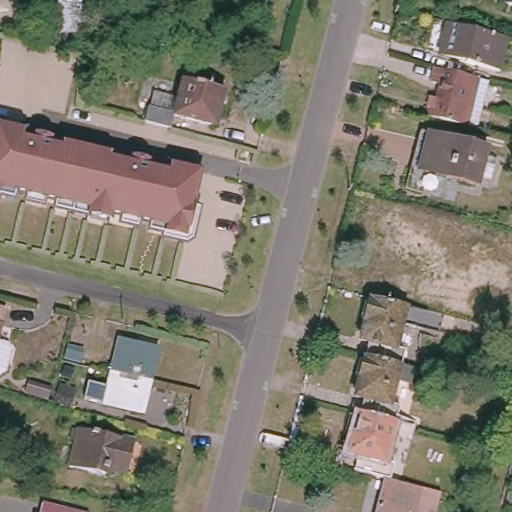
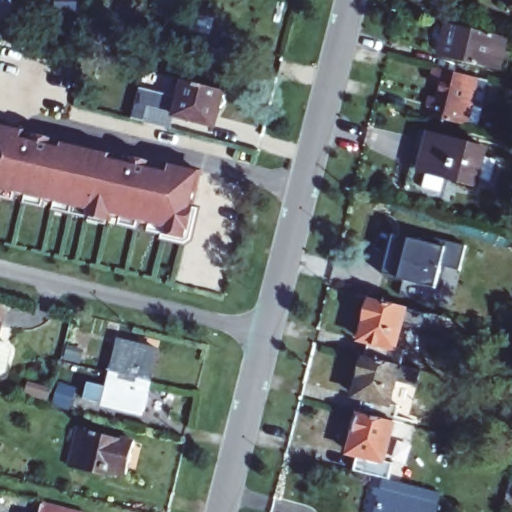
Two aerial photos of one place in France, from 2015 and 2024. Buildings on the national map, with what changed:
unchanged [(62,35),(63,0),(87,0),(87,5),(87,35),(62,35)]
unchanged [(481,62),(454,55),(462,25),(489,32),(489,34),(512,40),(512,73),(481,65),(481,62)]
unchanged [(497,85),(491,109),(485,131),(427,117),(430,107),(439,110),(443,97),(446,86),(437,83),(441,70),(497,85)]
unchanged [(154,94),(179,101),(184,84),(224,94),(223,100),(226,107),(220,110),(215,127),(175,117),(172,131),(146,124),(150,108),(151,108),(154,94)]
unchanged [(470,196),(406,180),(421,126),(483,142),(482,147),(495,151),(491,167),(478,163),(470,196)]
unchanged [(8,130),(28,135),(27,142),(39,144),(40,141),(56,144),(55,148),(67,151),(68,147),(116,158),(115,161),(136,166),(137,162),(153,166),(153,170),(174,174),(176,167),(204,174),(190,237),(171,232),(172,228),(156,225),(156,223),(146,220),(145,222),(127,218),(127,216),(117,214),(116,220),(94,215),(95,211),(61,204),(62,202),(51,199),(51,201),(32,197),(32,195),(22,193),(21,195),(6,191),(5,191),(4,195),(0,195),(0,129),(8,130)]
new [(399,236),(404,237),(429,243),(430,237),(473,248),(467,273),(448,268),(443,291),(389,278),(394,254),(399,236)]
unchanged [(416,325),(396,320),(389,344),(399,347),(396,361),(360,352),(364,337),(356,335),(361,319),(357,315),(361,299),(368,296),(421,310),(416,325)]
unchanged [(2,310),(0,318),(0,310),(2,310)]
unchanged [(158,345),(142,407),(102,397),(118,335),(158,345)]
unchanged [(5,344),(8,351),(3,373),(0,375),(0,343),(5,344)]
unchanged [(411,380),(393,376),(386,400),(398,404),(394,420),(357,411),(362,395),(351,392),(356,373),(351,368),(355,355),(360,352),(396,361),(415,366),(411,380)]
unchanged [(382,476),(351,468),(355,451),(347,449),(352,432),(348,426),(352,412),(357,411),(394,420),(410,424),(407,437),(387,432),(381,455),(390,458),(385,477),(382,476)]
unchanged [(131,442),(122,474),(101,469),(99,475),(64,465),(74,428),(131,442)]
unchanged [(437,491),(431,512),(373,512),(382,476),(385,477),(437,491)]
unchanged [(49,512),(37,512),(38,509),(49,512)]

